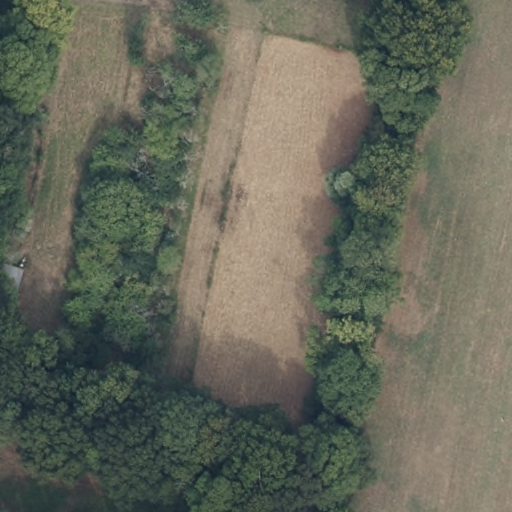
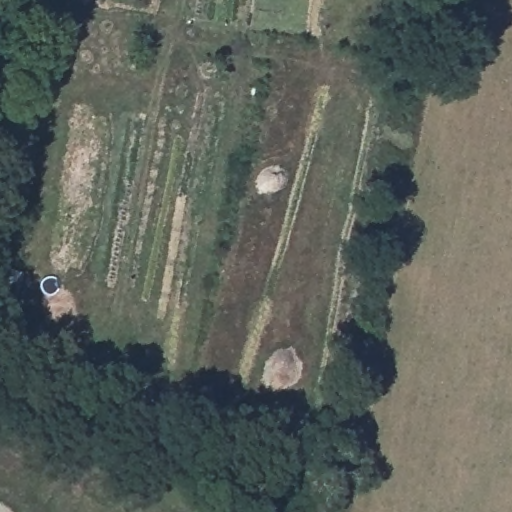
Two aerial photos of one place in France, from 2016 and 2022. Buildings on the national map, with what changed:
unchanged [(7,315),(0,313),(0,267),(19,272),(7,315)]

